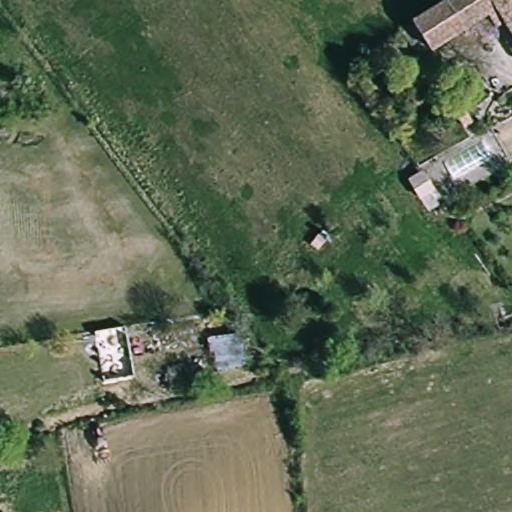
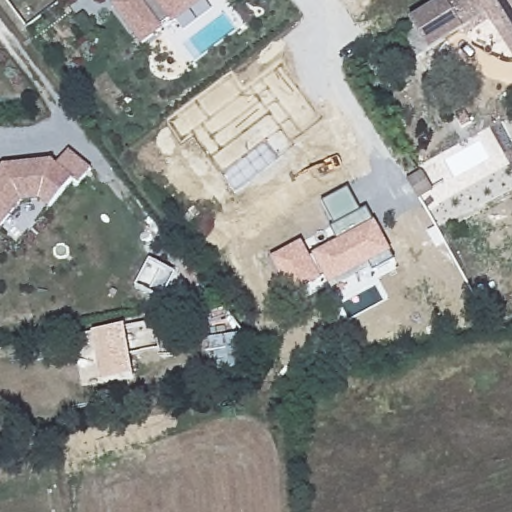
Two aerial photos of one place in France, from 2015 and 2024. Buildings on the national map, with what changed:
new [(139,4),(144,0),(207,0),(209,2),(175,27),(173,24),(161,33),(162,35),(143,49),(114,11),(128,0),(136,0),(139,4)]
unchanged [(419,37),(410,23),(447,0),(512,0),(512,42),(499,21),(489,27),(481,16),(417,55),(410,43),(419,37)]
new [(45,163),(50,167),(54,162),(59,166),(71,152),(94,172),(80,188),(74,182),(50,210),(40,201),(22,203),(0,229),(0,171),(4,167),(45,163)]
new [(292,296),(271,259),(302,241),(310,256),(338,241),(331,229),(336,226),(323,202),(348,189),(361,212),(367,209),(396,261),(374,273),(371,269),(333,290),(326,276),(323,279),(292,296)]
new [(132,376),(101,382),(93,332),(123,326),(132,376)]

